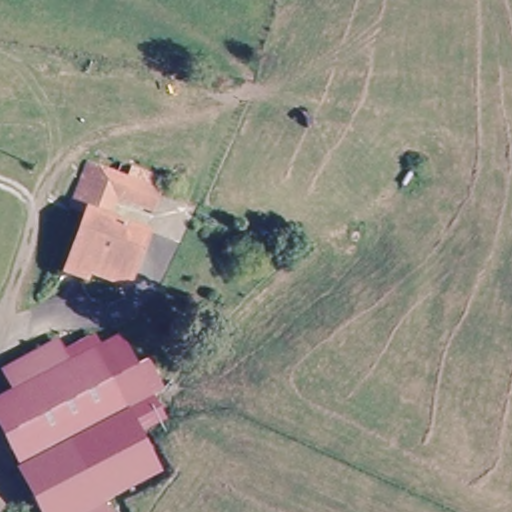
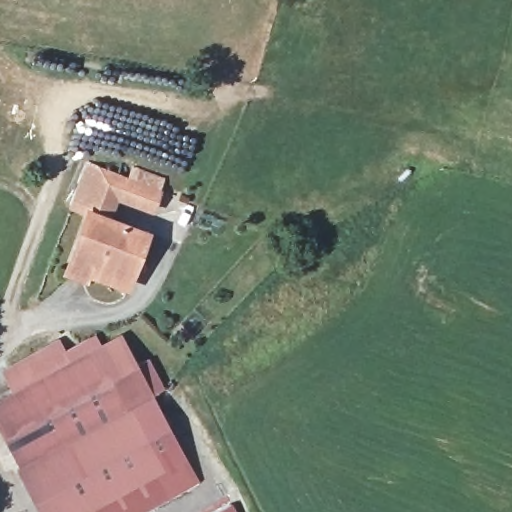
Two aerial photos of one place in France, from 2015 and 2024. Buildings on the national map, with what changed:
unchanged [(117,283),(97,276),(92,287),(49,272),(87,164),(116,174),(120,164),(169,181),(156,213),(117,200),(111,220),(154,235),(144,262),(135,289),(117,283)]
unchanged [(10,395),(0,378),(0,373),(54,341),(62,355),(93,337),(97,348),(119,336),(136,368),(150,396),(137,403),(27,463),(19,468),(0,434),(0,400),(10,395)]
unchanged [(19,468),(27,463),(137,403),(150,396),(136,368),(149,361),(164,389),(155,395),(167,419),(144,431),(164,472),(106,501),(112,512),(40,512),(17,470),(19,468)]
new [(200,481),(144,512),(112,512),(106,501),(164,472),(144,431),(167,419),(200,481)]
new [(234,503),(238,512),(217,512),(234,503)]

